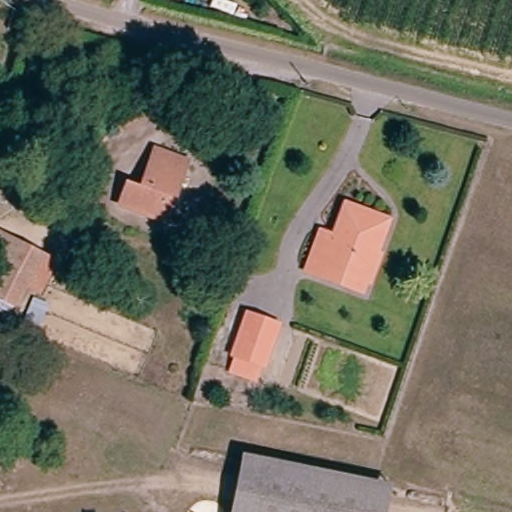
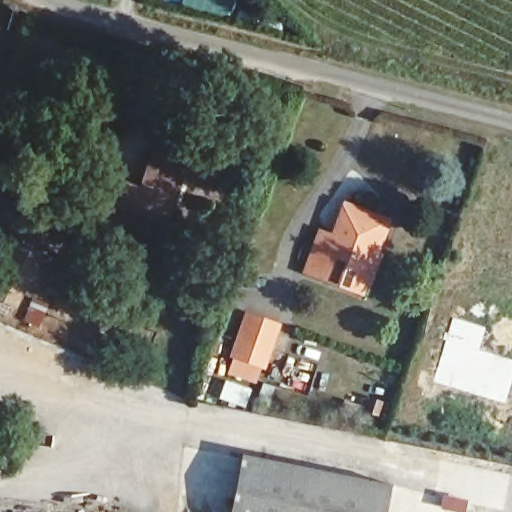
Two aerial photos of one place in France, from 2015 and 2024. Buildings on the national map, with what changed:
unchanged [(186,163),(164,223),(120,206),(127,186),(140,191),(155,152),(186,163)]
unchanged [(339,248),(351,217),(351,216),(393,231),(380,265),(383,266),(374,292),(371,292),(368,301),(313,281),(326,244),(339,248)]
unchanged [(15,313),(0,305),(0,246),(39,266),(15,313)]
unchanged [(250,323),(284,335),(269,378),(235,366),(250,323)]
unchanged [(240,458),(391,489),(386,512),(229,512),(232,498),(240,458)]
unchanged [(201,503),(207,502),(215,504),(219,507),(223,512),(190,512),(194,507),(201,503)]

